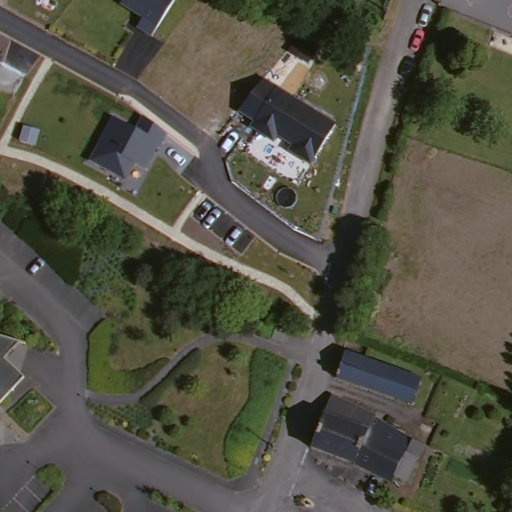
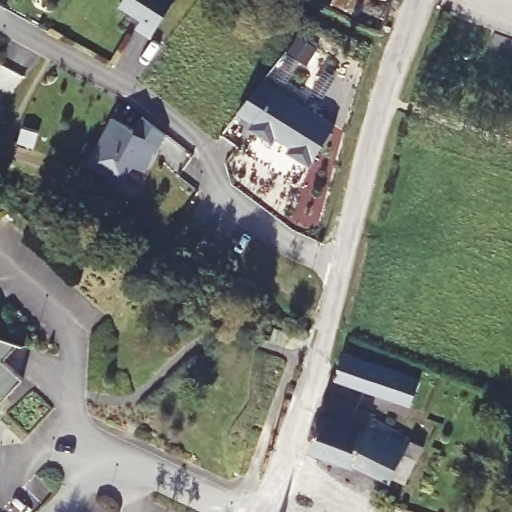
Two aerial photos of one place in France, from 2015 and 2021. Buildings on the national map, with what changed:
unchanged [(141,17),(121,6),(124,0),(175,0),(153,35),(136,27),(141,17)]
unchanged [(361,0),(353,14),(330,3),(332,0),(361,0)]
unchanged [(262,78),(336,123),(312,163),(291,149),(294,144),(277,135),(274,140),(247,124),(251,118),(239,112),(262,78)]
unchanged [(111,117),(135,129),(142,117),(166,135),(159,151),(155,149),(145,169),(133,163),(125,181),(89,161),(111,117)]
unchanged [(9,330),(2,344),(23,352),(9,367),(32,388),(0,422),(0,313),(5,318),(9,330)]
unchanged [(422,408),(410,404),(333,377),(344,352),(420,378),(433,382),(422,408)]
unchanged [(335,405),(379,425),(378,428),(429,455),(423,469),(421,468),(410,491),(398,484),(394,491),(361,474),(315,457),(335,405)]

